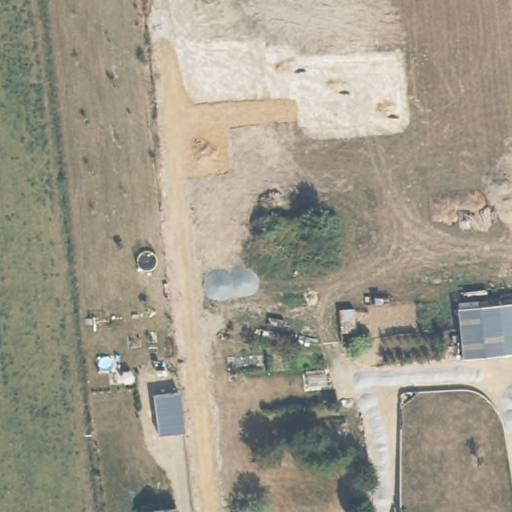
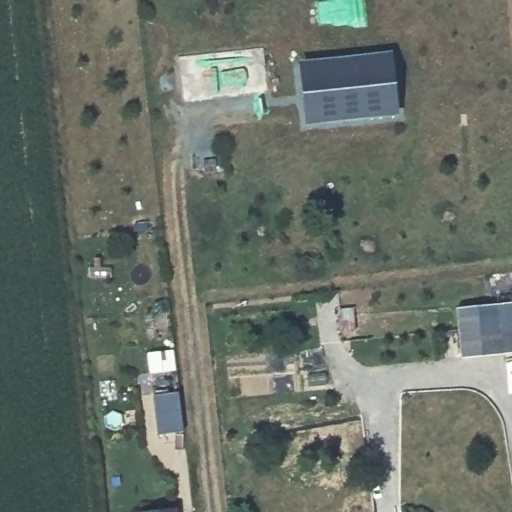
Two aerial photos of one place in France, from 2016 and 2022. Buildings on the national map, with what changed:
new [(400,113),(306,124),(299,59),(393,50),(400,113)]
unchanged [(496,304),(502,353),(462,358),(456,308),(496,304)]
unchanged [(159,433),(155,393),(179,390),(182,431),(159,433)]
unchanged [(141,510),(171,504),(173,512),(142,512),(141,510)]

